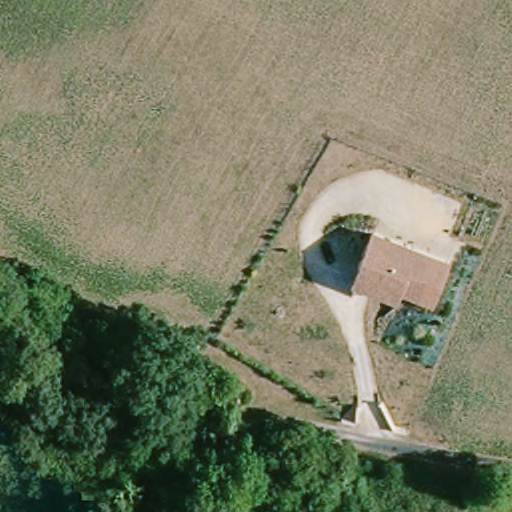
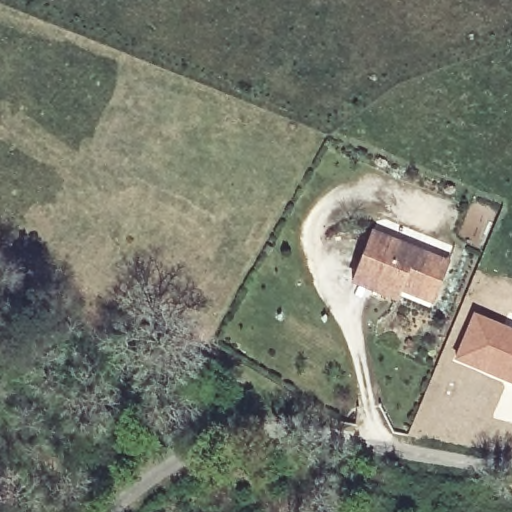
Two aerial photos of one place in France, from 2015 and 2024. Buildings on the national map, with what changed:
unchanged [(399,297),(381,291),(356,282),(361,267),(374,231),(451,259),(435,299),(433,305),(400,294),(399,297)]
new [(512,328),(512,385),(452,360),(472,312),(512,328)]

